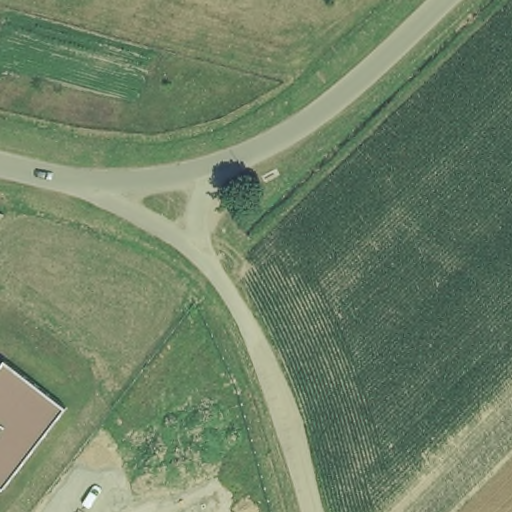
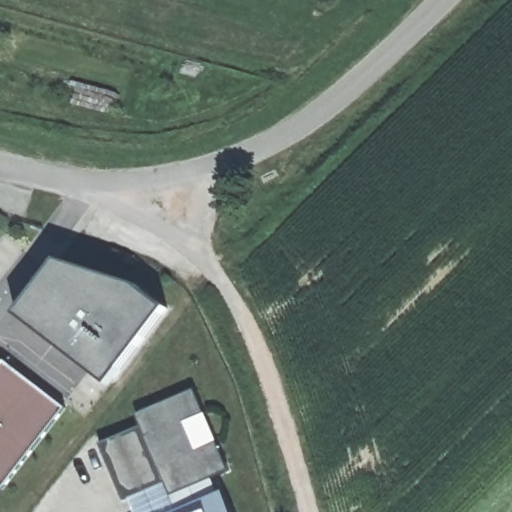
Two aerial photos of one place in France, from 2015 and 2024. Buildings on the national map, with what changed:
new [(108,385),(17,315),(58,260),(132,283),(168,309),(108,385)]
unchanged [(66,403),(2,486),(0,484),(0,362),(5,357),(66,403)]
new [(193,390),(228,472),(171,495),(162,477),(141,426),(136,413),(193,390)]
new [(162,477),(122,497),(103,443),(141,426),(162,477)]
new [(223,496),(230,512),(186,512),(223,496)]

